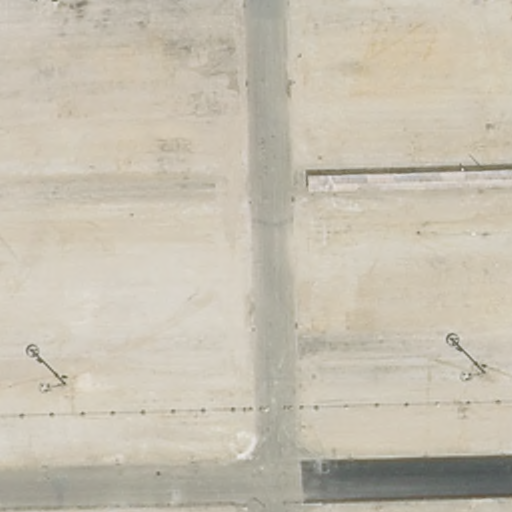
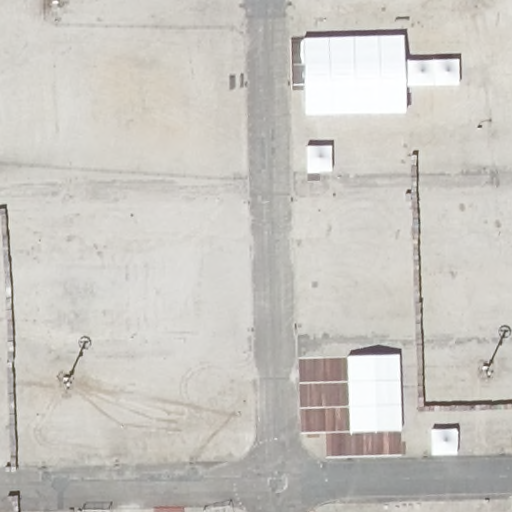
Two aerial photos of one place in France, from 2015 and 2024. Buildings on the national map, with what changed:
new [(403,36),(406,112),(305,114),(304,38),(403,36)]
new [(347,357),(399,355),(402,431),(350,432),(347,357)]

